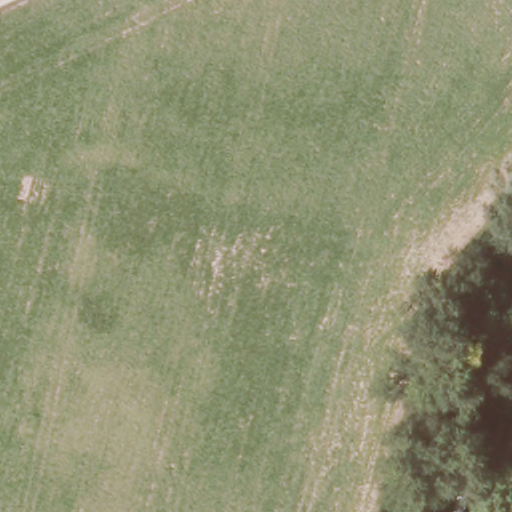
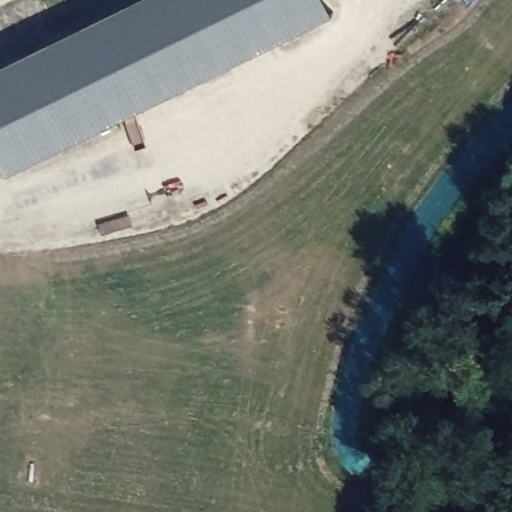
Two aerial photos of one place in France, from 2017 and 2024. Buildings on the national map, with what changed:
new [(7,174),(0,160),(0,68),(141,0),(327,0),(332,11),(7,174)]

